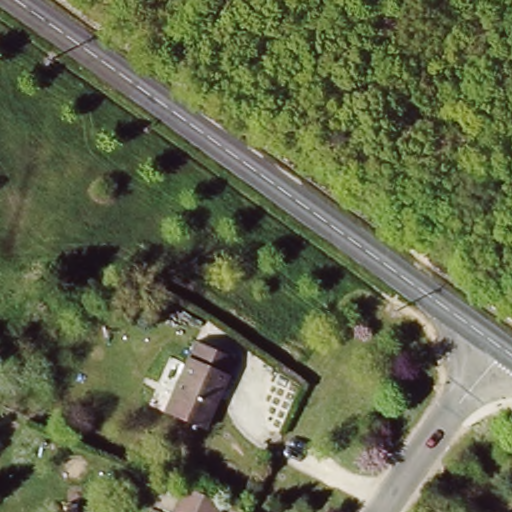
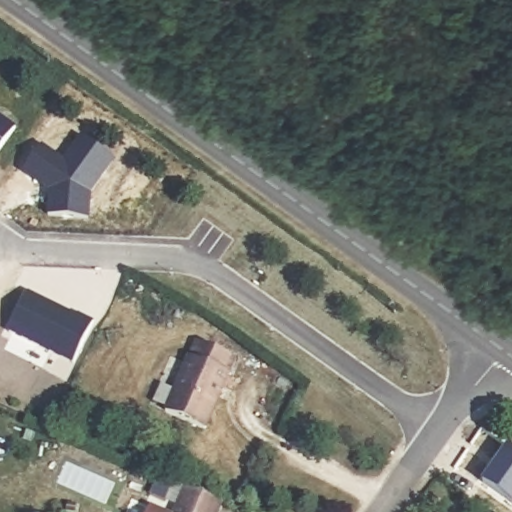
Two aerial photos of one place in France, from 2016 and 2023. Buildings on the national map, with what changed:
new [(16,129),(0,151),(0,117),(16,129)]
new [(41,145),(64,161),(82,137),(115,160),(91,194),(89,219),(48,216),(50,190),(23,171),(41,145)]
new [(29,292),(56,306),(55,308),(64,312),(68,311),(77,316),(78,314),(93,321),(74,363),(9,332),(29,292)]
unchanged [(198,355),(230,370),(202,429),(170,414),(198,355)]
new [(506,445),(512,449),(512,502),(481,481),(506,445)]
unchanged [(177,512),(187,490),(213,502),(230,510),(229,512),(177,512)]

